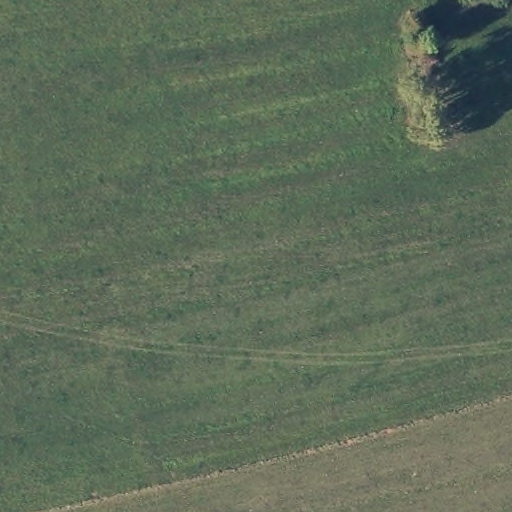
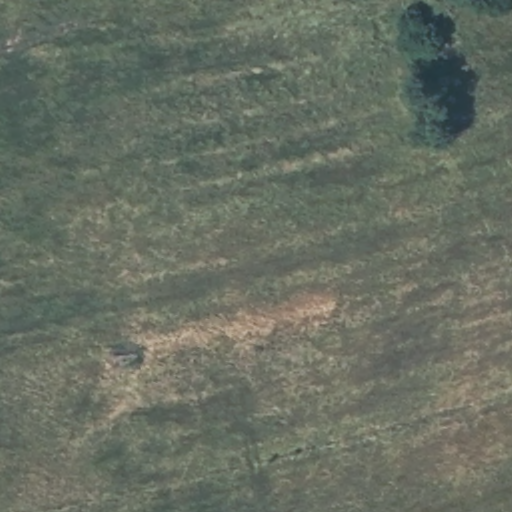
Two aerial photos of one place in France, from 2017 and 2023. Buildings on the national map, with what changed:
[]

